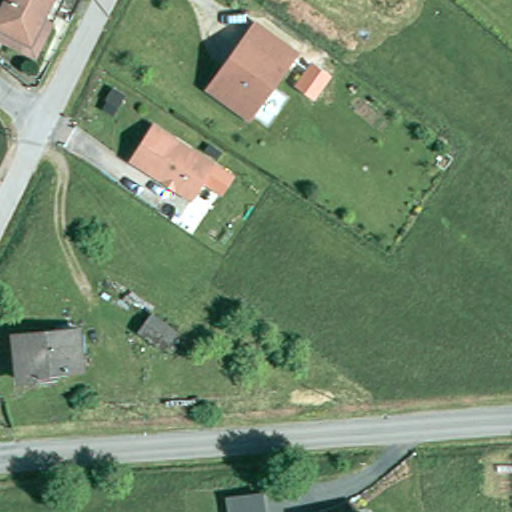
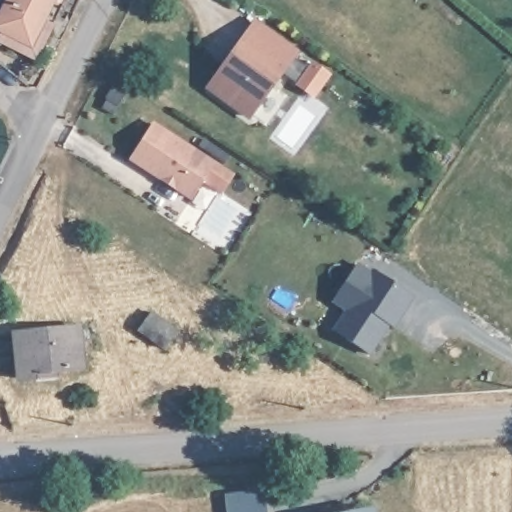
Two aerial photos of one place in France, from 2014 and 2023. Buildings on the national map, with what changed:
unchanged [(63,17),(43,53),(5,34),(12,21),(4,17),(0,15),(0,3),(2,0),(59,0),(52,11),(63,17)]
unchanged [(235,61),(232,59),(245,41),(246,42),(260,23),(299,50),(252,115),(215,90),(235,61)]
unchanged [(154,122),(215,163),(191,198),(130,158),(154,122)]
new [(415,296),(395,329),(390,326),(370,357),(332,333),(345,311),(332,303),(358,261),(415,296)]
unchanged [(154,315),(177,333),(164,352),(141,334),(154,315)]
unchanged [(80,364),(43,368),(44,379),(17,382),(12,333),(76,326),(80,364)]
unchanged [(269,512),(229,512),(226,495),(265,491),(269,512)]
unchanged [(377,507),(378,512),(354,512),(377,507)]

